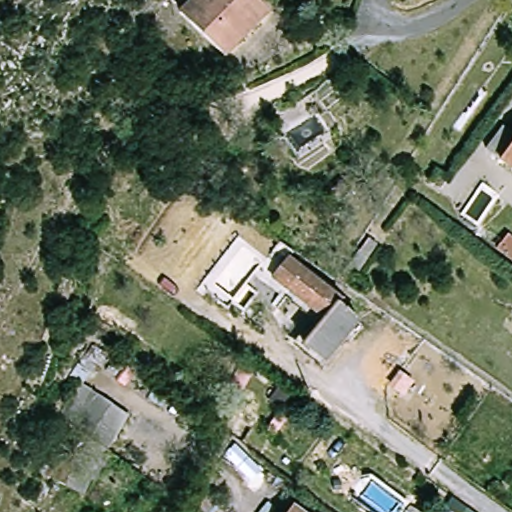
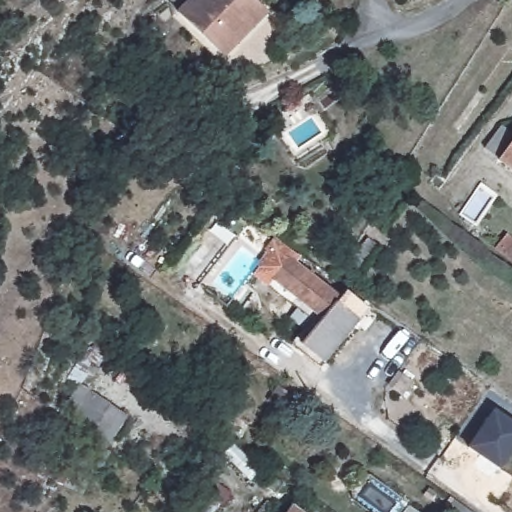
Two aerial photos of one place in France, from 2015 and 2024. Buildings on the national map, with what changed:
unchanged [(180,0),(208,0),(193,15),(179,0),(180,0)]
unchanged [(234,60),(190,17),(193,15),(208,0),(259,0),(276,17),(234,60)]
unchanged [(512,132),(512,144),(501,158),(490,150),(506,127),(512,132)]
unchanged [(512,167),(504,161),(512,150),(512,167)]
unchanged [(347,189),(336,199),(330,190),(340,181),(347,189)]
unchanged [(512,243),(512,262),(496,250),(505,237),(512,243)]
unchanged [(346,270),(367,240),(375,245),(353,276),(346,270)]
unchanged [(341,300),(337,305),(356,322),(325,361),(303,345),(323,320),(272,279),(288,260),(341,300)]
unchanged [(62,416),(81,385),(130,419),(109,451),(87,435),(62,416)]
new [(512,455),(493,480),(472,466),(478,458),(466,448),(495,410),(512,421),(512,455)]
unchanged [(86,494),(56,479),(71,448),(79,451),(87,435),(109,451),(86,494)]
unchanged [(57,469),(51,480),(40,475),(45,463),(57,469)]
unchanged [(197,489),(195,488),(203,473),(220,481),(211,498),(219,505),(214,512),(186,512),(183,510),(197,489)]
unchanged [(419,512),(407,512),(411,506),(419,512)]

